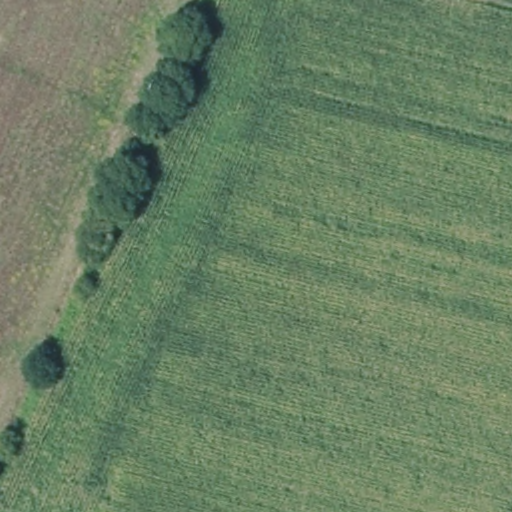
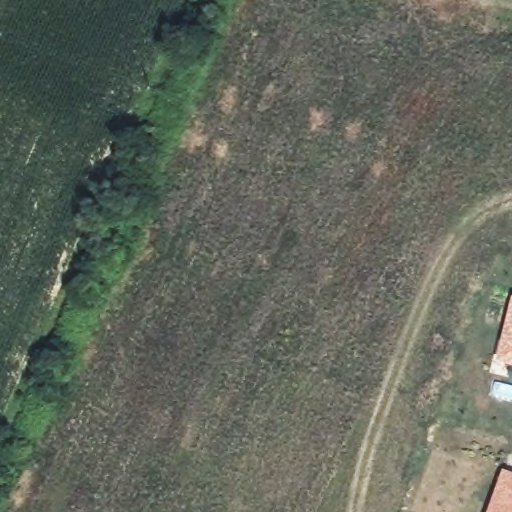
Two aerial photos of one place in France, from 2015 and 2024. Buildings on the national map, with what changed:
new [(511,294),(512,295),(512,365),(495,360),(511,294)]
new [(512,472),(512,512),(486,512),(502,468),(512,472)]

